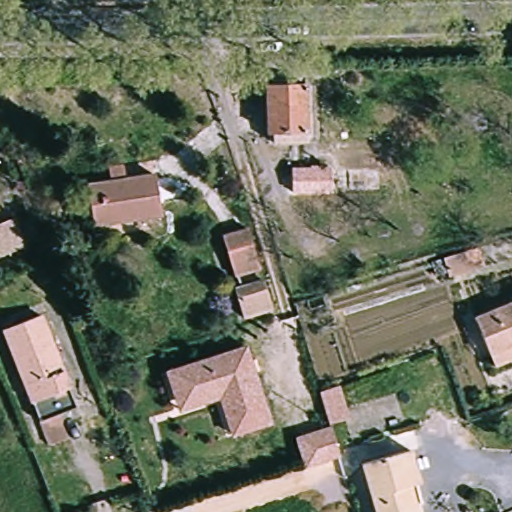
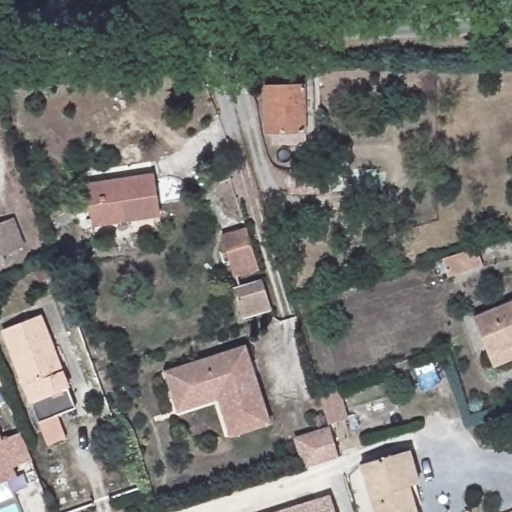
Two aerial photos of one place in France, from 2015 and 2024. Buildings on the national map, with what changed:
unchanged [(305,132),(265,133),(265,86),(303,85),(305,132)]
unchanged [(444,132),(392,132),(392,111),(443,110),(444,132)]
unchanged [(158,216),(93,226),(87,185),(108,182),(107,167),(122,165),(124,179),(152,175),(158,216)]
unchanged [(378,190),(275,192),(275,171),(377,168),(378,190)]
unchanged [(0,254),(0,227),(9,251),(0,254)]
unchanged [(258,268),(232,276),(220,237),(246,229),(258,268)]
unchanged [(482,267),(447,277),(442,258),(477,247),(482,267)]
unchanged [(270,308),(242,317),(233,289),(262,281),(270,308)]
unchanged [(472,318),(512,302),(512,359),(492,367),(489,357),(472,318)]
unchanged [(47,445),(38,422),(30,402),(2,330),(38,316),(75,408),(57,416),(65,438),(47,445)]
unchanged [(171,396),(162,368),(243,344),(267,422),(229,433),(217,396),(175,408),(171,396)]
unchanged [(334,387),(343,417),(328,422),(319,392),(334,387)]
unchanged [(294,437),(329,427),(338,457),(303,468),(294,437)]
new [(0,436),(2,441),(20,433),(31,458),(12,466),(17,477),(0,484),(0,436)]
unchanged [(415,512),(374,512),(360,465),(408,451),(418,483),(408,487),(415,512)]
new [(281,511),(315,502),(331,497),(333,504),(335,512),(278,512),(281,511)]

